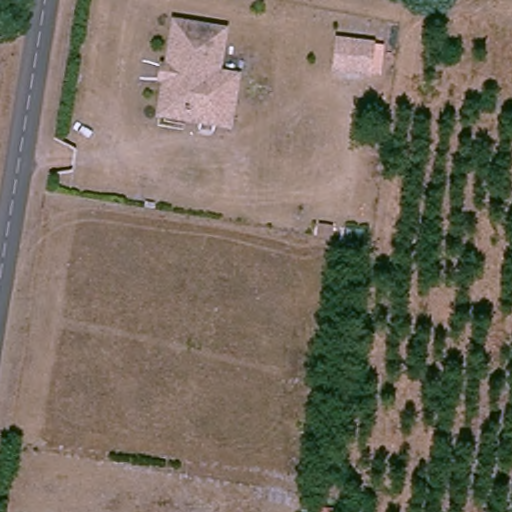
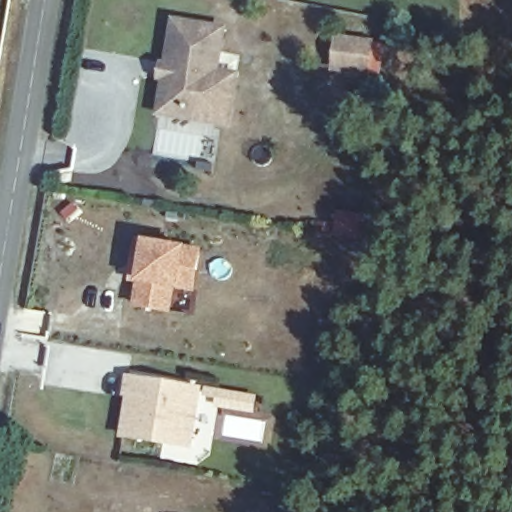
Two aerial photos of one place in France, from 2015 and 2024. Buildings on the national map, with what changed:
unchanged [(194,121),(157,116),(164,78),(168,55),(174,26),(237,37),(233,69),(242,73),(236,102),(231,126),(194,121)]
unchanged [(384,43),(381,76),(369,74),(331,70),(335,38),(371,42),(384,43)]
new [(180,287),(176,286),(172,311),(138,306),(142,281),(134,280),(138,260),(141,241),(202,251),(199,270),(195,290),(180,287)]
new [(193,451),(120,438),(126,397),(122,396),(126,375),(203,386),(193,451)]
new [(221,395),(255,400),(253,412),(219,407),(221,395)]

